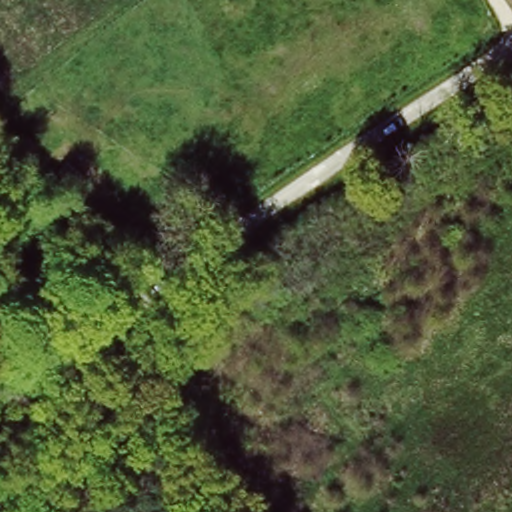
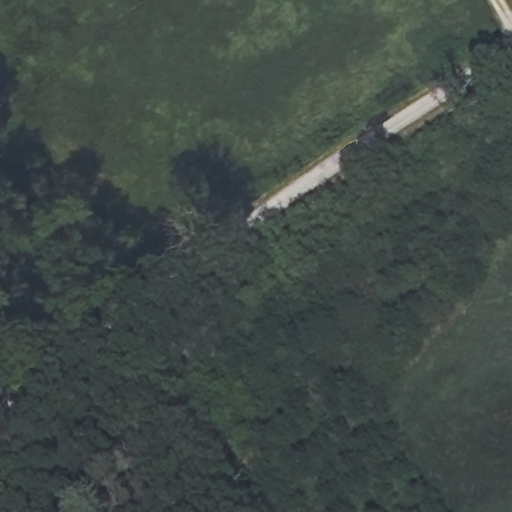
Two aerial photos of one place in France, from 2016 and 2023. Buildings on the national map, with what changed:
unchanged [(505,0),(512,0),(512,13),(505,0)]
unchanged [(108,213),(93,223),(83,209),(99,199),(108,213)]

